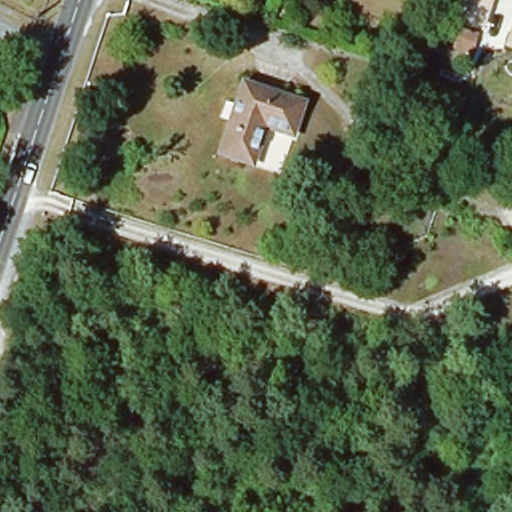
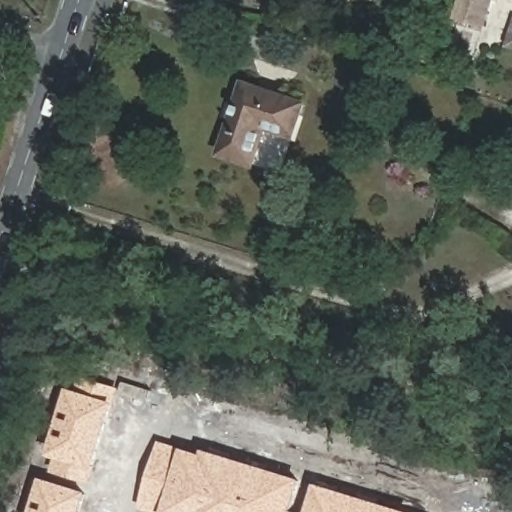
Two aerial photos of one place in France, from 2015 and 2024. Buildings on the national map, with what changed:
new [(483,26),(462,19),(455,16),(460,0),(492,0),(483,26)]
new [(512,38),(512,48),(509,47),(512,38)]
unchanged [(307,105),(297,136),(269,128),(257,164),(227,154),(250,86),(307,105)]
new [(94,469),(90,482),(52,471),(57,458),(49,455),(69,388),(79,391),(82,378),(120,388),(116,402),(94,469)]
new [(202,454),(204,450),(300,480),(291,512),(149,512),(139,509),(159,441),(182,448),(202,454)]
new [(87,492),(81,512),(31,512),(42,478),(87,492)]
new [(409,512),(307,512),(316,484),(409,512)]

